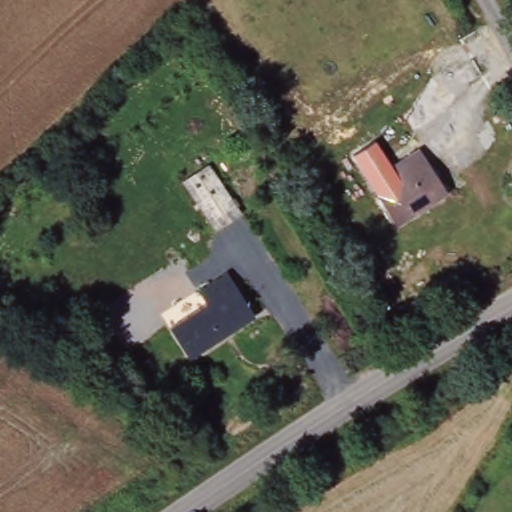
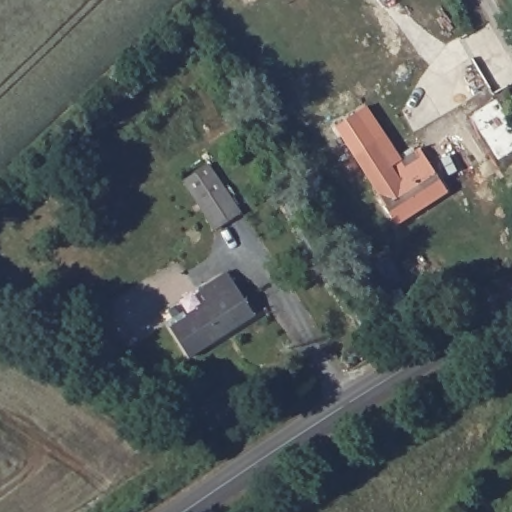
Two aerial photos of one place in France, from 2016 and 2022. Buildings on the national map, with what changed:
new [(389,169),(373,144),(353,157),(335,129),(366,105),(402,161),(389,169)]
unchanged [(353,157),(373,144),(389,169),(398,182),(378,196),(353,157)]
unchanged [(378,196),(398,182),(389,169),(418,151),(446,194),(398,225),(378,196)]
unchanged [(186,182),(210,167),(238,213),(215,227),(186,182)]
unchanged [(199,353),(180,322),(200,312),(191,297),(223,277),(251,319),(199,353)]

